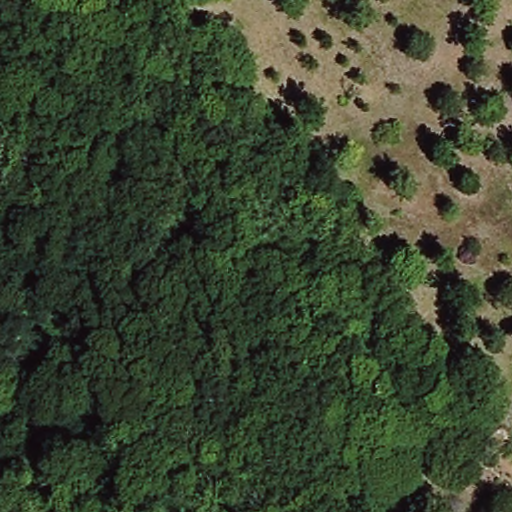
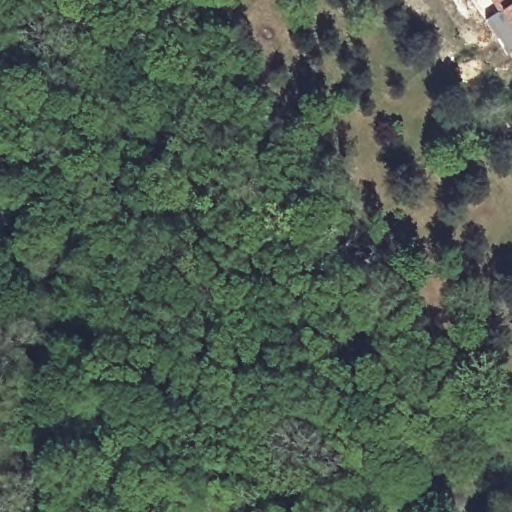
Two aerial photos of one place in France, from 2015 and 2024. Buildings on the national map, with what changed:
new [(506,55),(483,20),(495,12),(490,5),(478,12),(471,0),(512,0),(512,51),(506,55)]

